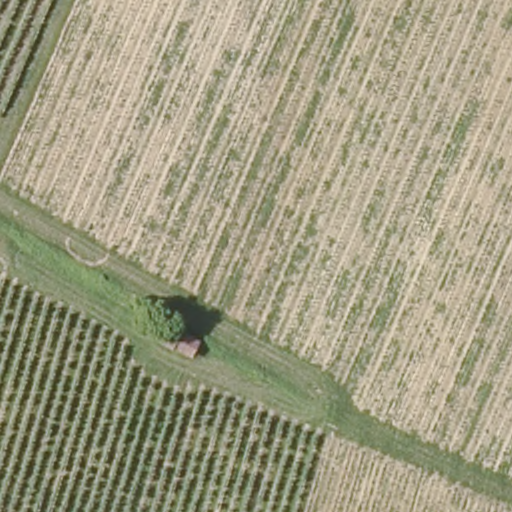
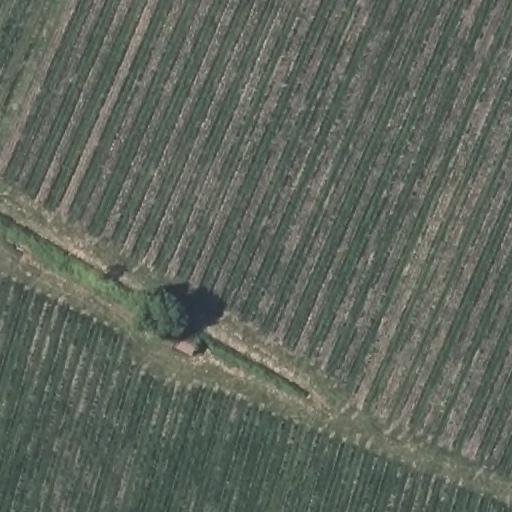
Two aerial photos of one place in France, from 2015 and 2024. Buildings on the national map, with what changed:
unchanged [(150,337),(161,318),(197,342),(190,357),(150,337)]

